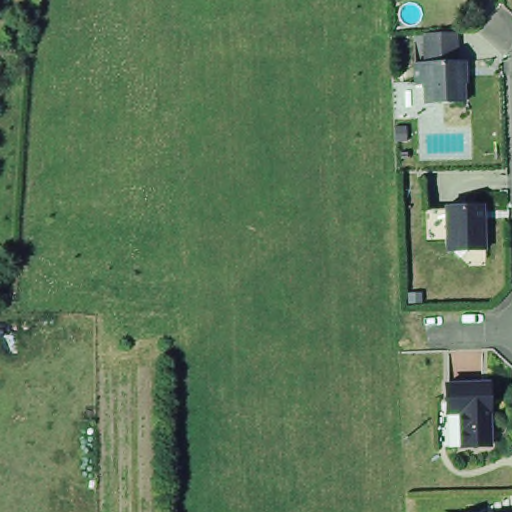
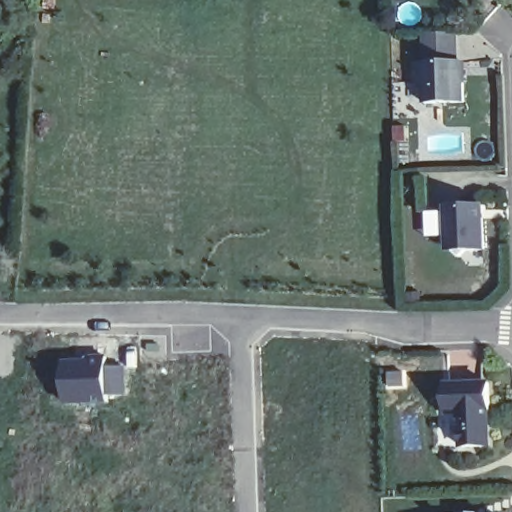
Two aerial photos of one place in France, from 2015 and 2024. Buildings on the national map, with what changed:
unchanged [(459,102),(420,104),(420,86),(411,85),(411,64),(421,64),(421,33),(450,32),(451,63),(458,62),(459,102)]
unchanged [(441,201),(478,199),(480,244),(461,245),(456,251),(442,240),(441,201)]
new [(108,357),(108,366),(126,366),(126,398),(108,398),(108,404),(65,405),(63,360),(108,357)]
unchanged [(448,385),(491,384),(492,410),(490,411),(491,445),(465,446),(464,411),(448,411),(448,385)]

